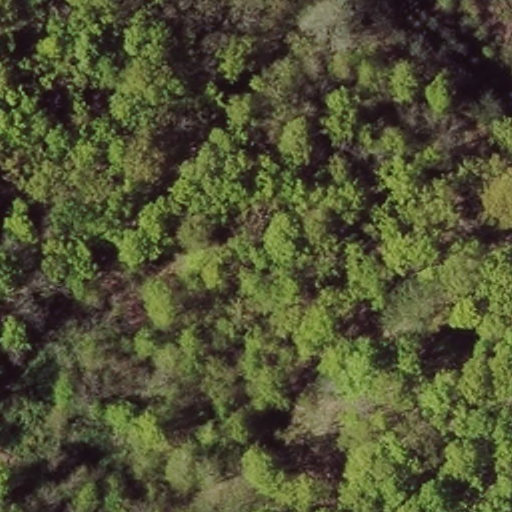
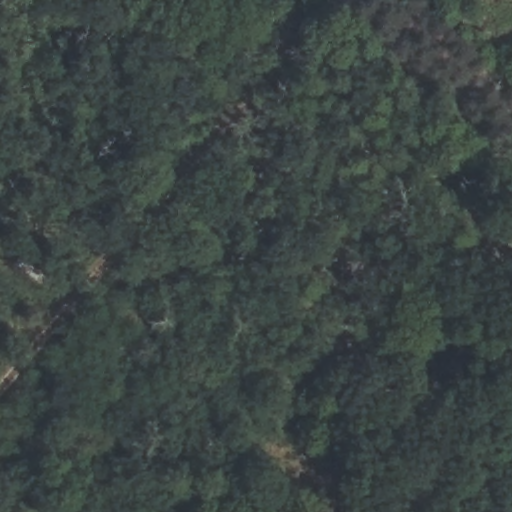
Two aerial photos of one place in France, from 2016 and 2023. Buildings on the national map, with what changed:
[]

